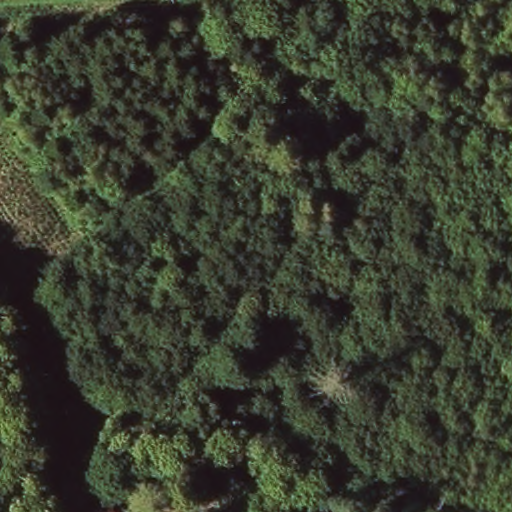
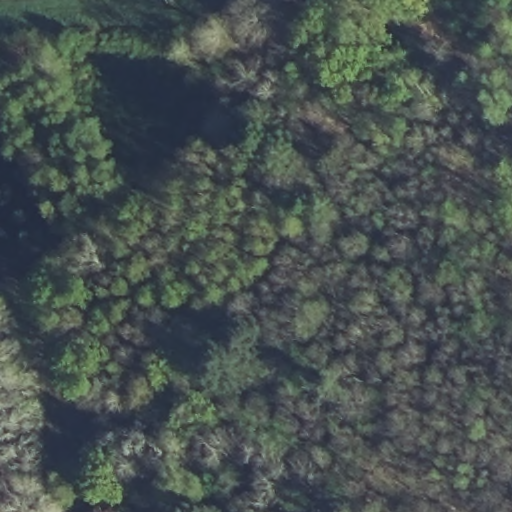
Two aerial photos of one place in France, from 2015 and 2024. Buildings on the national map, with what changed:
unchanged [(94,512),(105,507),(108,512),(94,512)]

